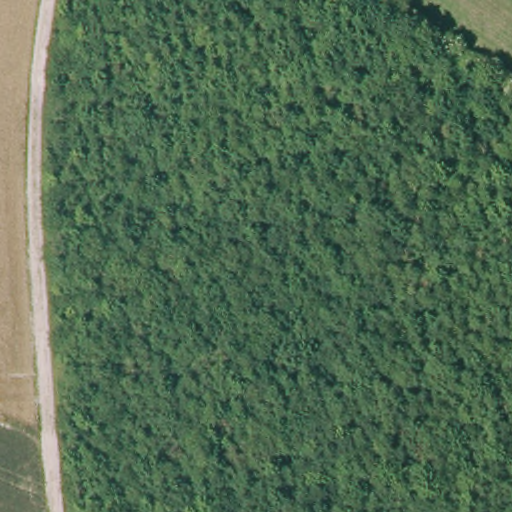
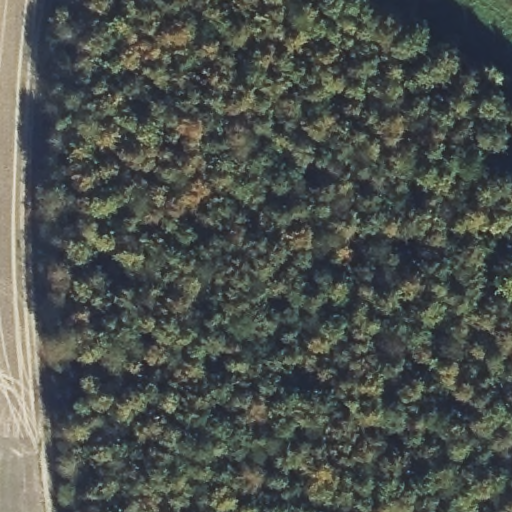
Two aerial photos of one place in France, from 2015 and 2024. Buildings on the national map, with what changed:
[]

